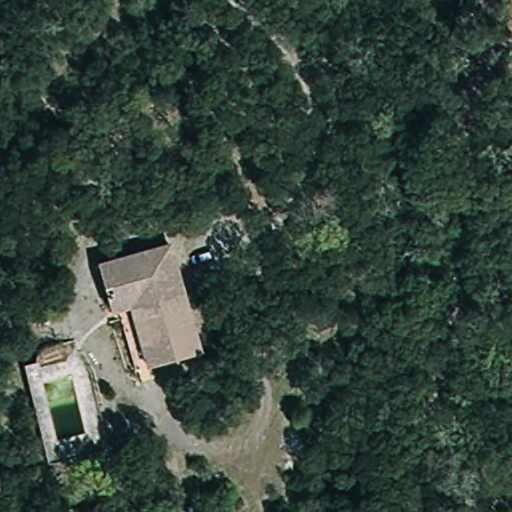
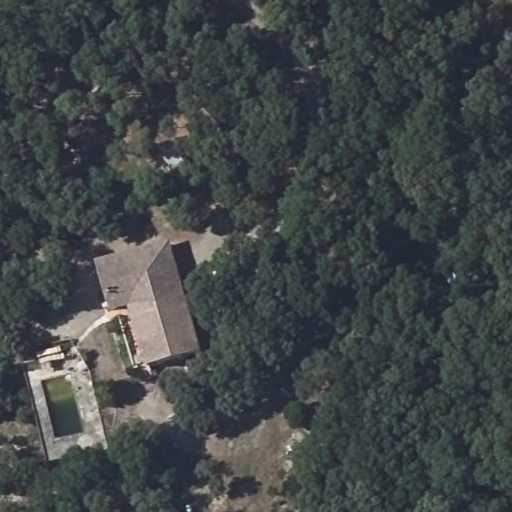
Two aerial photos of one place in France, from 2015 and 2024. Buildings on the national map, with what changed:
unchanged [(108,294),(99,261),(171,242),(201,351),(162,361),(142,286),(108,294)]
unchanged [(149,364),(131,305),(111,309),(108,294),(142,286),(162,361),(149,364)]
unchanged [(40,359),(63,438),(93,429),(98,449),(51,462),(25,364),(40,359)]

